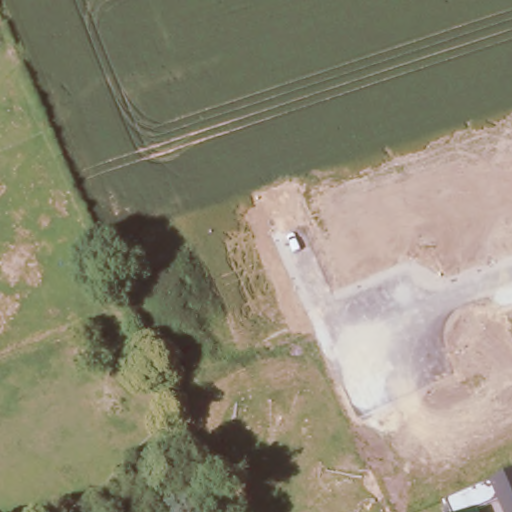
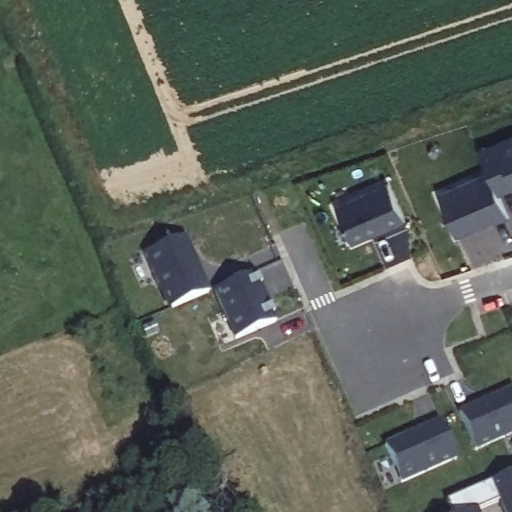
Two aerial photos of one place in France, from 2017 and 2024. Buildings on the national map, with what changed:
new [(508,215),(458,236),(439,192),(489,170),(479,149),(512,134),(512,187),(499,193),(508,215)]
new [(385,182),(402,220),(349,242),(334,205),(385,182)]
new [(183,237),(208,292),(171,308),(146,253),(183,237)]
new [(254,272),(275,321),(235,338),(214,290),(254,272)]
new [(512,388),(512,389),(512,432),(474,448),(457,411),(512,388)]
new [(438,421),(454,458),(399,481),(383,444),(438,421)]
unchanged [(224,453),(231,470),(208,480),(201,463),(224,453)]
unchanged [(449,501),(512,474),(512,512),(509,512),(504,500),(479,511),(480,512),(453,512),(449,501)]

